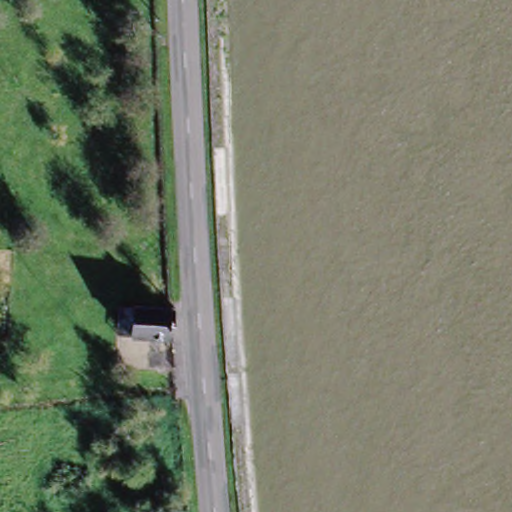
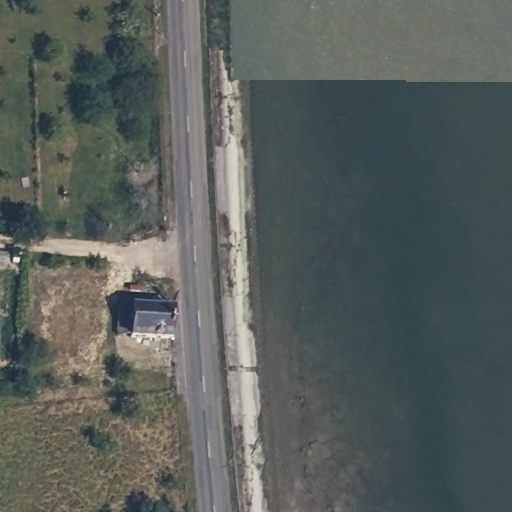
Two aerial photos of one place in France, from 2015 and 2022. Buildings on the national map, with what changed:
unchanged [(176,307),(173,335),(170,336),(131,333),(134,304),(169,307),(176,307)]

